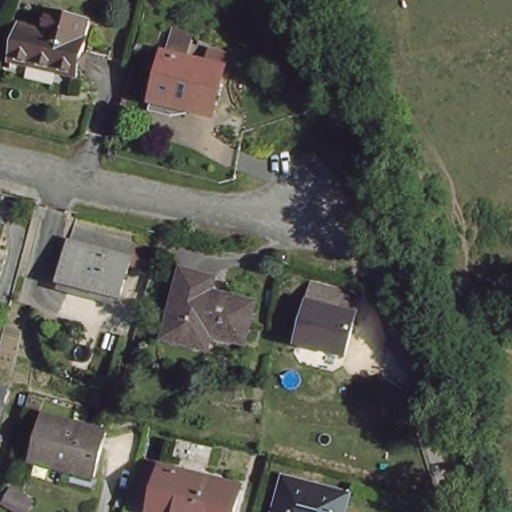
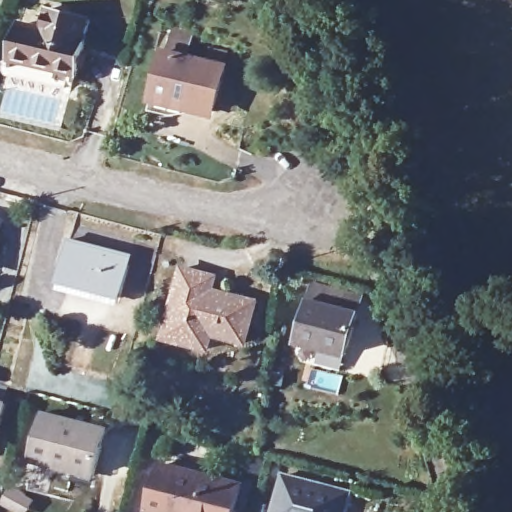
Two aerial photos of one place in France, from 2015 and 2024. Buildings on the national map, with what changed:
unchanged [(41,35),(47,15),(89,26),(76,76),(14,59),(22,30),(41,35)]
unchanged [(229,63),(218,107),(158,91),(169,47),(229,63)]
unchanged [(122,273),(123,267),(62,248),(66,234),(155,260),(149,281),(122,273)]
unchanged [(50,290),(62,248),(123,267),(122,273),(113,307),(50,290)]
unchanged [(214,277),(209,297),(225,302),(228,292),(258,302),(247,343),(214,333),(210,347),(167,337),(185,270),(214,277)]
unchanged [(359,318),(351,353),(326,347),(324,357),(299,350),(310,306),(359,318)]
unchanged [(4,406),(0,419),(0,404),(4,406)]
unchanged [(106,436),(93,479),(32,463),(44,417),(106,436)]
unchanged [(236,512),(150,512),(160,472),(241,493),(236,512)]
unchanged [(285,475),(350,492),(344,512),(275,512),(278,500),(285,475)]

